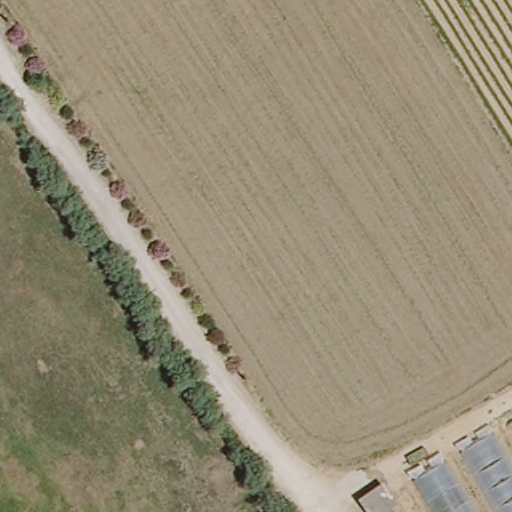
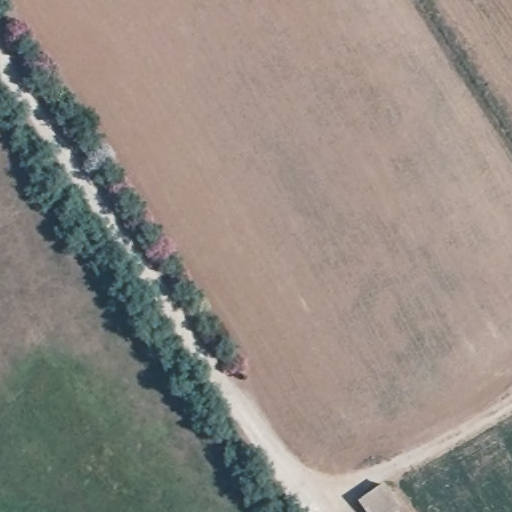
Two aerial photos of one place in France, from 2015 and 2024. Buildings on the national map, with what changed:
demolished [(512,413),(512,512),(433,512),(410,472),(512,413)]
unchanged [(388,512),(370,512),(363,501),(384,486),(398,505),(388,512)]

